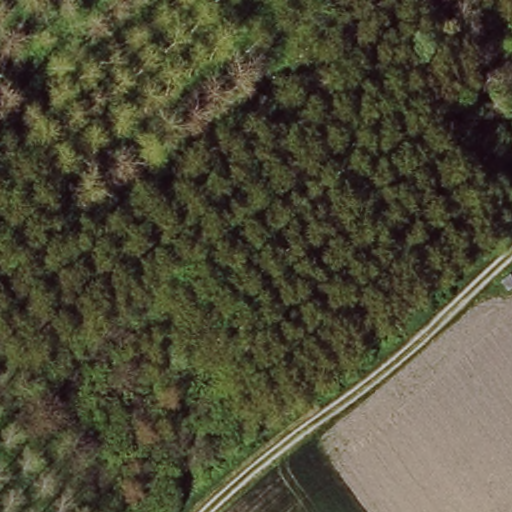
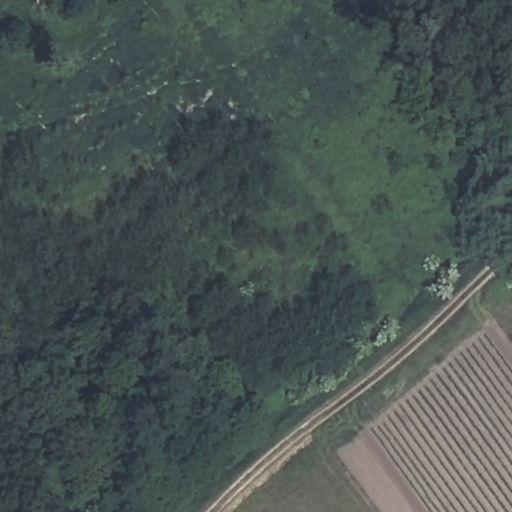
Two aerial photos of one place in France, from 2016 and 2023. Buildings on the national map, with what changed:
[]

